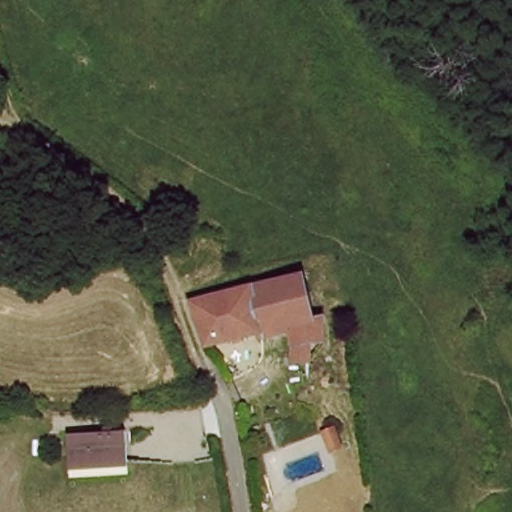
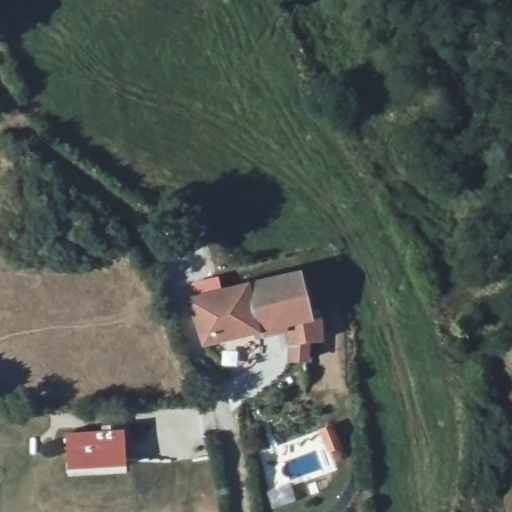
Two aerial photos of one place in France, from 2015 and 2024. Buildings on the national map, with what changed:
unchanged [(203,344),(196,298),(192,282),(218,276),(222,292),(240,287),(304,271),(320,266),(330,315),(322,316),(324,336),(308,336),(283,342),(280,326),(203,344)]
unchanged [(293,359),(291,345),(307,343),(308,357),(293,359)]
unchanged [(123,421),(126,460),(65,466),(62,426),(123,421)]

